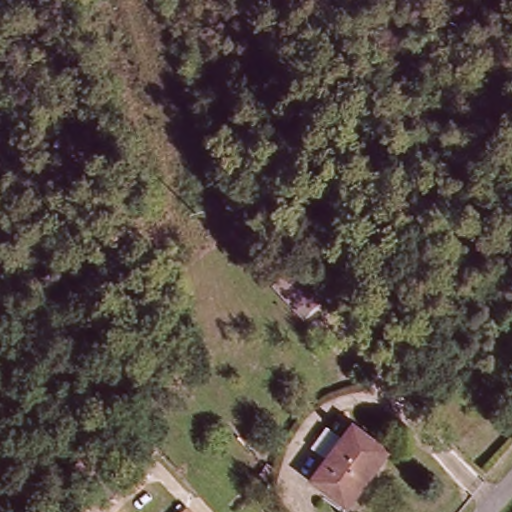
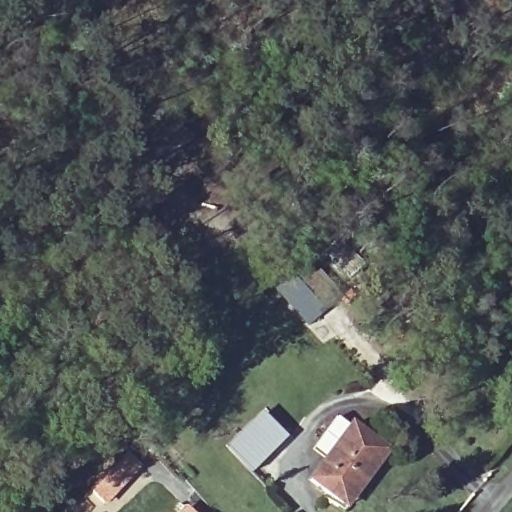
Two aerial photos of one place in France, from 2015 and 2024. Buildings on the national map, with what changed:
unchanged [(298,260),(312,276),(308,286),(317,306),(312,313),(322,329),(310,336),(274,285),(298,260)]
new [(226,447),(261,412),(287,439),(252,472),(226,447)]
unchanged [(388,456),(344,510),(310,482),(353,428),(388,456)]
unchanged [(191,512),(186,512),(189,510),(191,512)]

